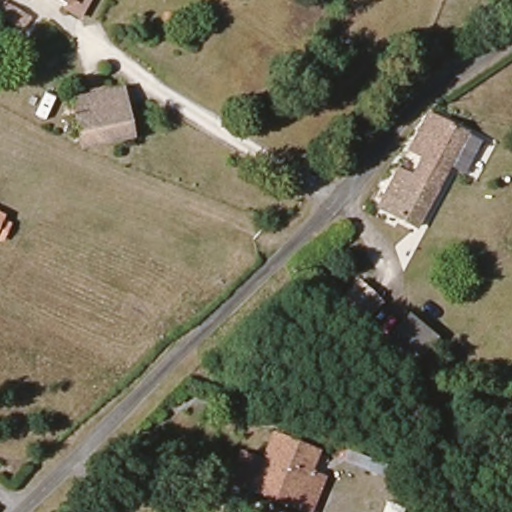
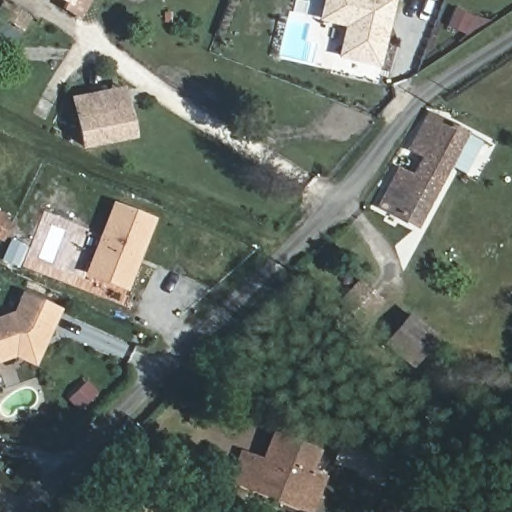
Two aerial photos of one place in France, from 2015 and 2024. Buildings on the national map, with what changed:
unchanged [(79,12),(57,0),(86,0),(79,12)]
new [(379,68),(336,58),(343,27),(317,21),(322,0),(396,0),(379,68)]
new [(455,7),(484,21),(480,29),(475,26),(470,37),(446,26),(455,7)]
unchanged [(25,22),(18,34),(3,26),(9,14),(25,22)]
unchanged [(127,114),(77,122),(73,101),(124,92),(127,114)]
unchanged [(381,207),(390,190),(401,167),(416,176),(425,160),(409,152),(431,112),(469,135),(430,211),(421,227),(381,207)]
unchanged [(77,122),(127,114),(131,139),(82,147),(77,122)]
new [(111,201),(156,219),(127,292),(82,275),(111,201)]
unchanged [(338,301),(354,282),(378,302),(362,322),(338,301)]
new [(15,357),(0,363),(0,316),(13,312),(22,292),(62,309),(35,366),(15,357)]
unchanged [(409,317),(435,339),(408,368),(382,348),(409,317)]
unchanged [(207,357),(252,362),(249,375),(204,366),(207,357)]
unchanged [(310,510),(297,506),(276,499),(278,492),(256,485),(253,491),(236,485),(245,457),(264,462),(272,437),(315,451),(309,470),(323,474),(310,510)]

